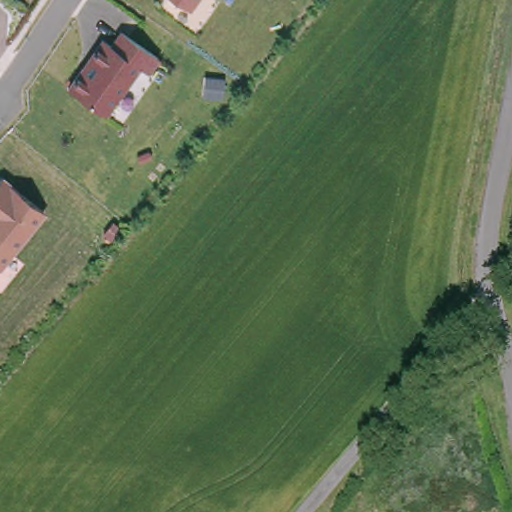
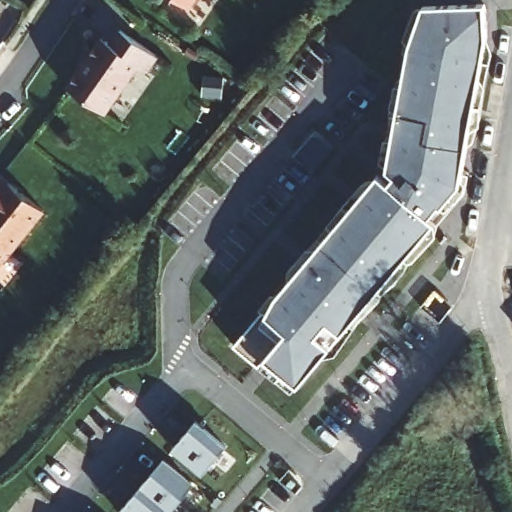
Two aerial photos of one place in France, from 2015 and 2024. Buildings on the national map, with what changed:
unchanged [(176,0),(196,0),(190,9),(176,0)]
new [(467,174),(438,213),(304,372),(275,350),(264,362),(237,339),(385,164),(417,35),(429,0),(493,0),(494,25),(467,174)]
unchanged [(159,59),(149,73),(139,66),(107,115),(65,86),(100,36),(106,42),(117,30),(159,59)]
unchanged [(44,212),(0,265),(0,176),(44,212)]
new [(194,420),(224,445),(201,472),(171,447),(194,420)]
new [(162,458),(192,484),(170,510),(140,485),(162,458)]
new [(140,485),(170,510),(168,512),(119,512),(117,510),(140,485)]

